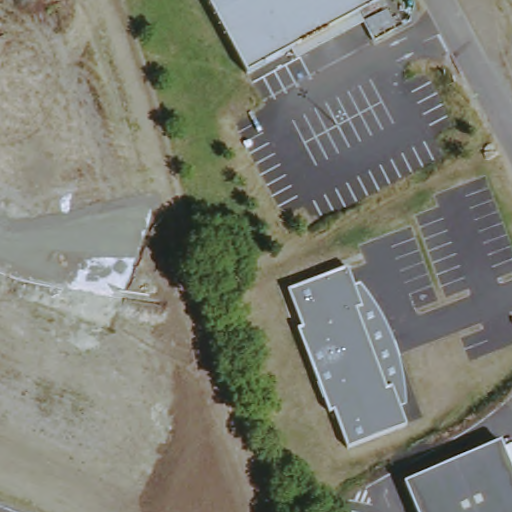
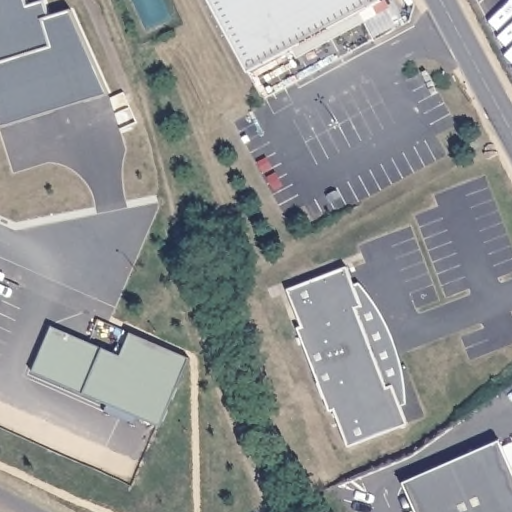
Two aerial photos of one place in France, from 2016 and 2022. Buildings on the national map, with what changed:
new [(24,6),(41,1),(46,17),(68,10),(96,99),(69,107),(66,97),(37,106),(41,116),(0,128),(0,0),(22,0),(24,6)]
unchanged [(383,8),(244,70),(213,0),(379,0),(383,8)]
unchanged [(414,422),(356,446),(341,410),(337,411),(302,329),(306,327),(292,294),(350,270),(357,287),(366,307),(360,310),(392,386),(398,383),(407,404),(414,422)]
unchanged [(362,285),(364,286),(366,289),(369,292),(371,294),(373,297),(376,300),(379,305),(381,308),(383,312),(388,321),(392,326),(396,335),(398,340),(400,346),(402,351),(404,355),(405,359),(406,364),(407,369),(409,374),(409,379),(410,383),(411,388),(411,392),(412,397),(412,402),(407,404),(398,383),(392,386),(360,310),(366,307),(357,287),(362,285)]
new [(32,371),(50,328),(122,357),(132,334),(190,359),(162,426),(32,371)]
unchanged [(501,443),(512,464),(512,512),(421,512),(409,490),(501,443)]

